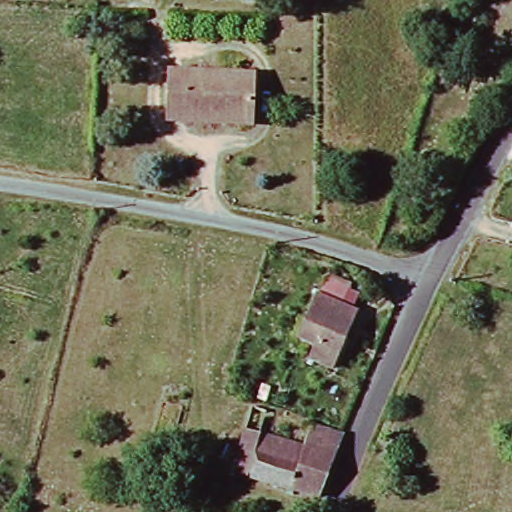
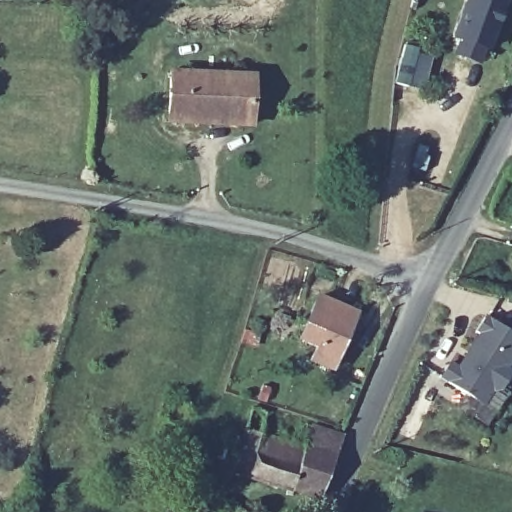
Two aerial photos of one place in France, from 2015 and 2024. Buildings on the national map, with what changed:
new [(488,58),(466,50),(472,35),(465,33),(477,0),(512,0),(512,7),(498,46),(493,44),(488,58)]
unchanged [(168,121),(171,76),(251,81),(248,126),(168,121)]
unchanged [(336,373),(310,364),(317,344),(302,339),(315,301),(355,315),(336,373)]
new [(456,368),(479,333),(475,331),(484,317),(512,336),(512,359),(507,367),(509,375),(500,389),(491,391),(482,405),(440,378),(448,363),(456,368)]
unchanged [(344,437),(320,495),(237,466),(249,428),(304,447),(313,424),(344,437)]

